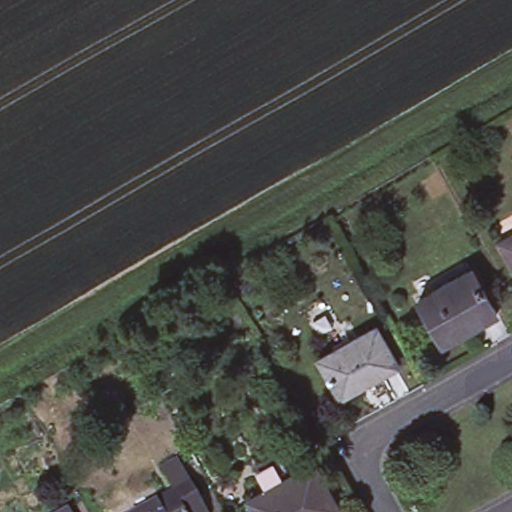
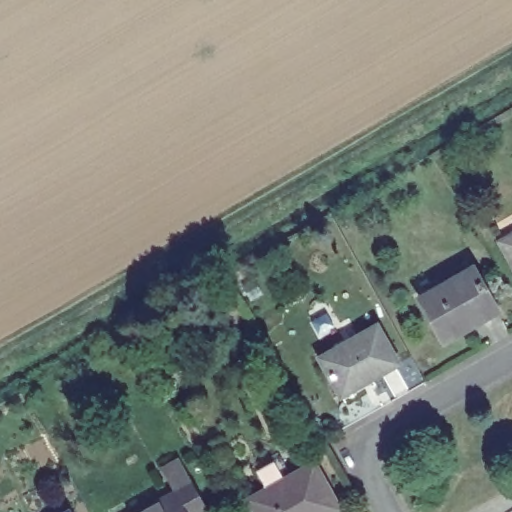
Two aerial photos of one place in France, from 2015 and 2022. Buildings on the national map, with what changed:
unchanged [(512,253),(504,238),(512,234),(512,253)]
unchanged [(470,267),(479,281),(484,284),(498,308),(443,340),(418,298),(470,267)]
unchanged [(382,321),(402,359),(375,374),(380,382),(350,398),(325,353),(382,321)]
unchanged [(212,505),(199,512),(191,512),(176,485),(163,462),(181,452),(212,505)]
unchanged [(313,462),(340,505),(329,512),(259,512),(252,500),(313,462)]
unchanged [(176,485),(191,512),(130,512),(176,485)]
unchanged [(72,512),(61,512),(70,507),(72,512)]

